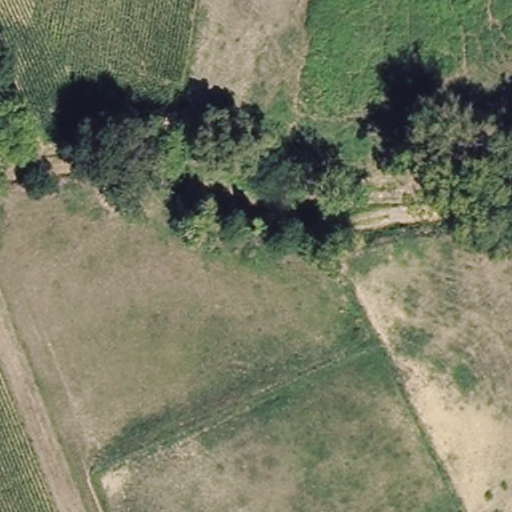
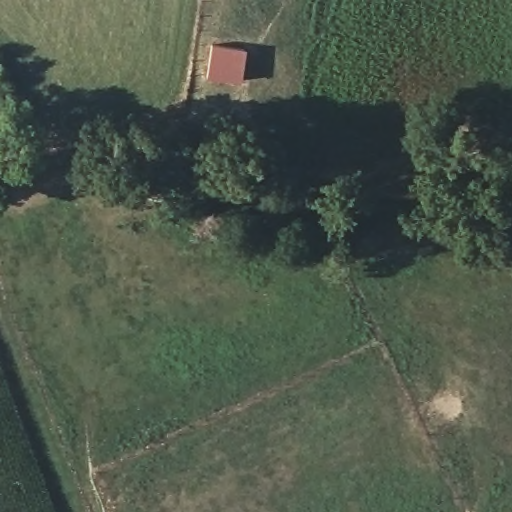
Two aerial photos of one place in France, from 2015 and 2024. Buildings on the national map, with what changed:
new [(206,77),(212,44),(246,49),(241,81),(206,77)]

